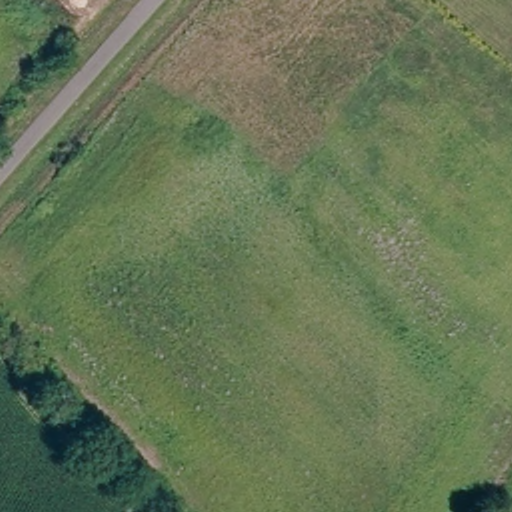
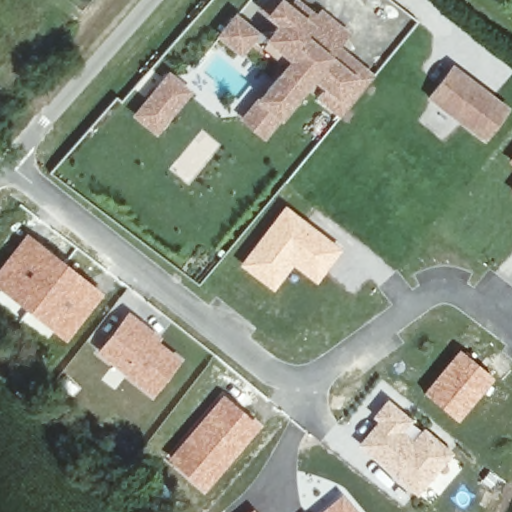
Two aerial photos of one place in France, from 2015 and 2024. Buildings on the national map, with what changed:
new [(257,31),(272,30),(275,26),(263,15),(255,8),(263,0),(284,0),(288,3),(293,0),(299,0),(315,15),(320,9),(351,33),(341,45),(376,74),(340,118),(307,88),(280,120),(264,141),(239,120),(255,98),(283,64),(255,42),(250,42),(239,55),(215,37),(234,14),(257,31)]
new [(511,106),(485,142),(426,97),(452,62),(511,106)]
new [(193,91),(155,136),(129,116),(170,70),(193,91)]
new [(512,166),(505,160),(512,152),(512,166)]
new [(512,186),(512,195),(507,191),(512,186)]
new [(284,204),(341,248),(316,282),(292,265),(273,289),(238,263),(284,204)]
new [(26,232),(103,293),(66,342),(43,327),(0,292),(0,267),(26,232)]
new [(128,309),(161,336),(158,340),(183,358),(153,397),(95,352),(128,309)]
new [(459,348),(494,379),(457,421),(421,392),(459,348)]
new [(223,393),(262,425),(204,493),(166,459),(223,393)]
new [(375,420),(371,416),(386,397),(454,452),(417,496),(357,445),(375,420)]
new [(358,512),(318,512),(342,493),(358,512)]
new [(256,512),(247,512),(252,507),(256,512)]

